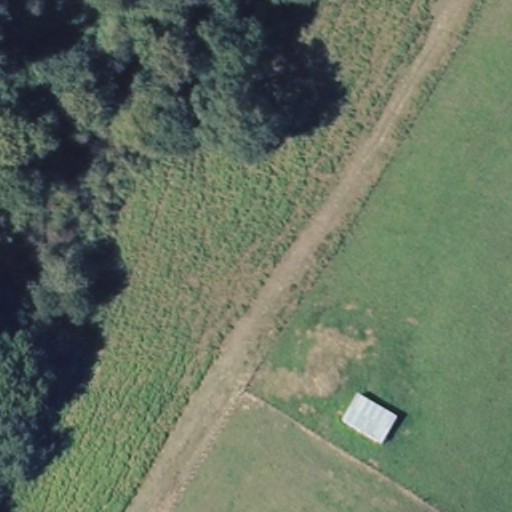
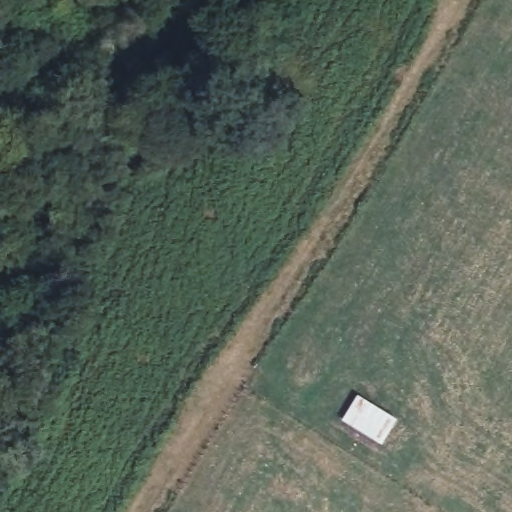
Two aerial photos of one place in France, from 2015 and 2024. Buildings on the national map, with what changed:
unchanged [(416,409),(393,450),(337,420),(343,407),(353,411),(365,385),(416,409)]

